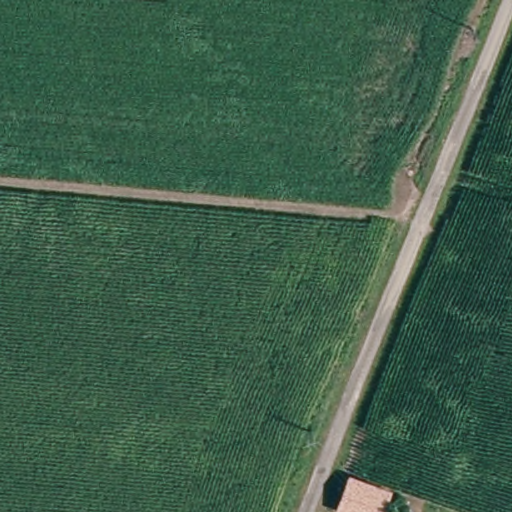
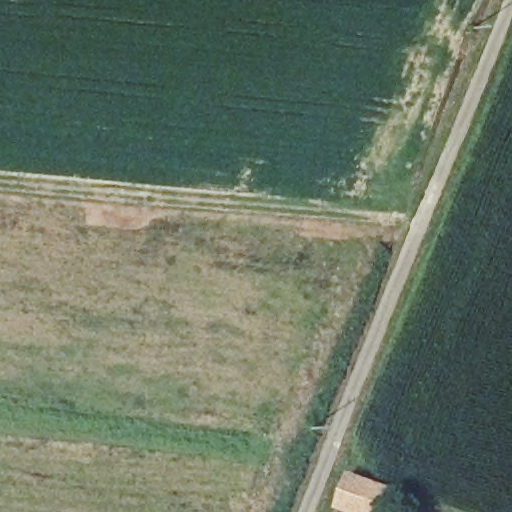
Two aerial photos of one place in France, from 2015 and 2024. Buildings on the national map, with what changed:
unchanged [(381,512),(346,512),(337,508),(350,476),(390,491),(381,512)]

